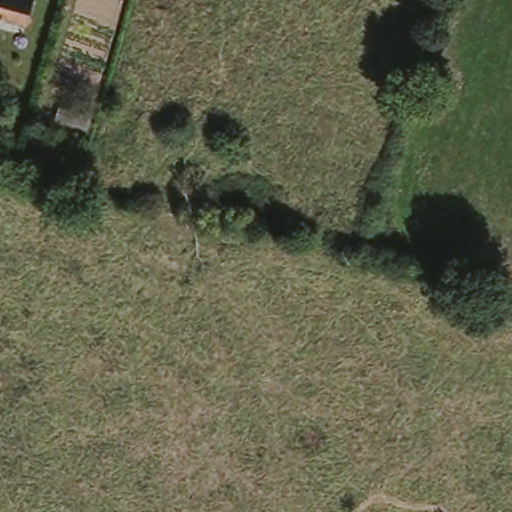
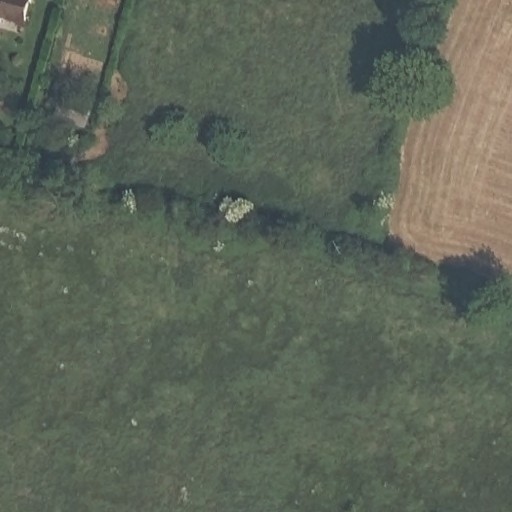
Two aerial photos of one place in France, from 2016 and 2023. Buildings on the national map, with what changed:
unchanged [(0,10),(0,0),(19,0),(14,14),(0,10)]

